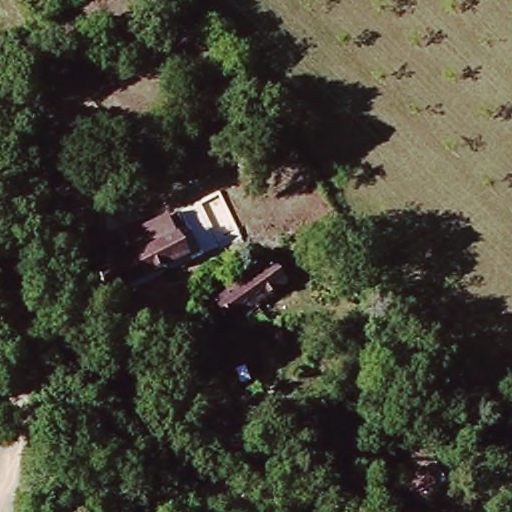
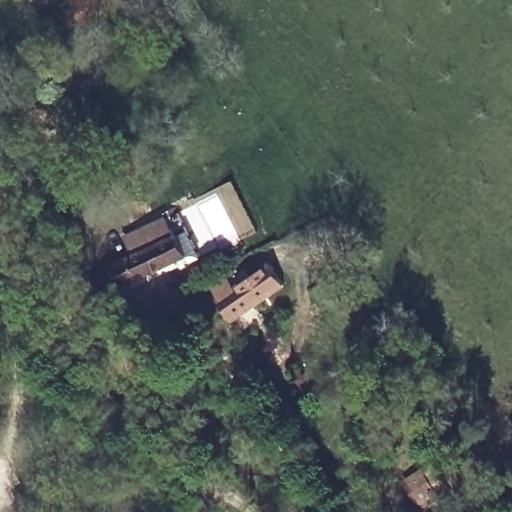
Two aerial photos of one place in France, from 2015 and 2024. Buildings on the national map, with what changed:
unchanged [(90,271),(126,244),(119,233),(160,216),(162,222),(168,231),(184,223),(192,242),(199,258),(185,265),(112,301),(91,272),(90,271)]
unchanged [(282,284),(227,322),(211,298),(265,261),(282,284)]
unchanged [(406,481),(432,467),(447,496),(422,508),(406,481)]

